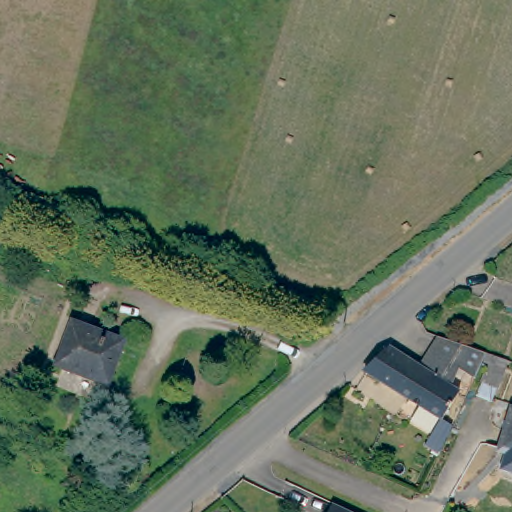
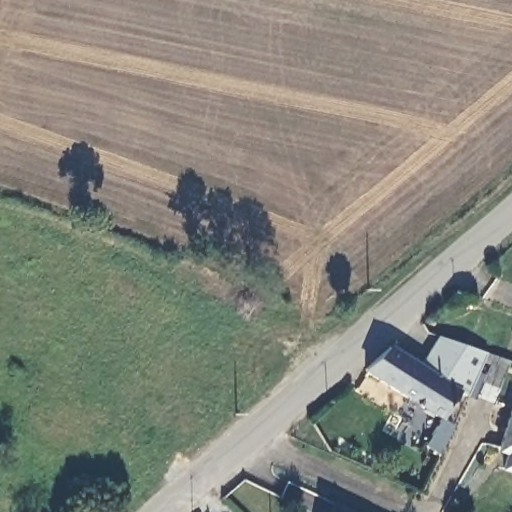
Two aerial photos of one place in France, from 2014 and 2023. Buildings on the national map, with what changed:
demolished [(0,212),(0,207),(1,207),(0,212)]
demolished [(126,341),(114,380),(88,371),(85,377),(56,368),(71,323),(126,341)]
unchanged [(421,370),(438,338),(475,353),(488,359),(476,383),(463,377),(456,392),(462,397),(445,423),(363,371),(389,349),(421,370)]
unchanged [(512,406),(512,454),(501,450),(508,429),(502,427),(510,405),(512,406)]
unchanged [(335,505),(336,505),(349,512),(332,512),(335,505)]

